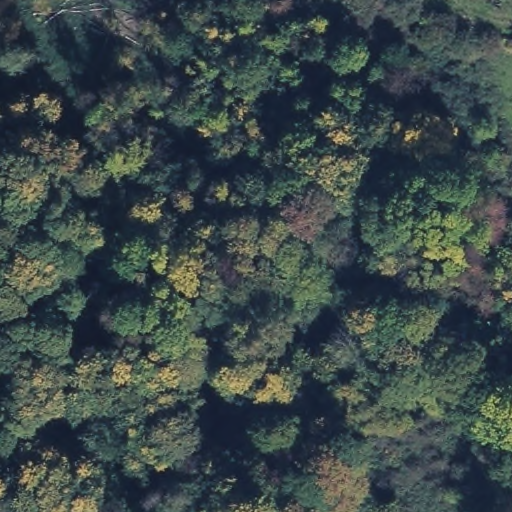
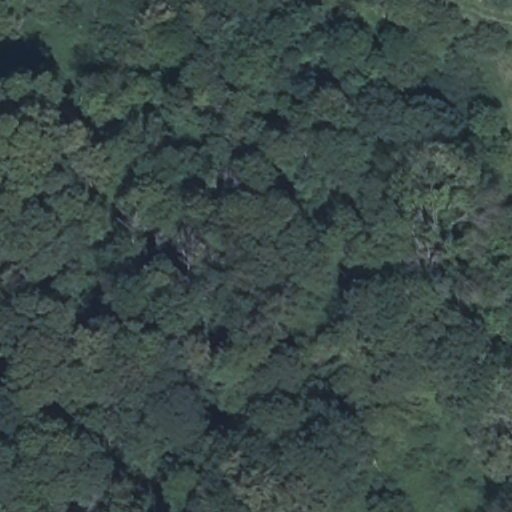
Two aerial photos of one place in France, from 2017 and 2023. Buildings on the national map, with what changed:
[]

